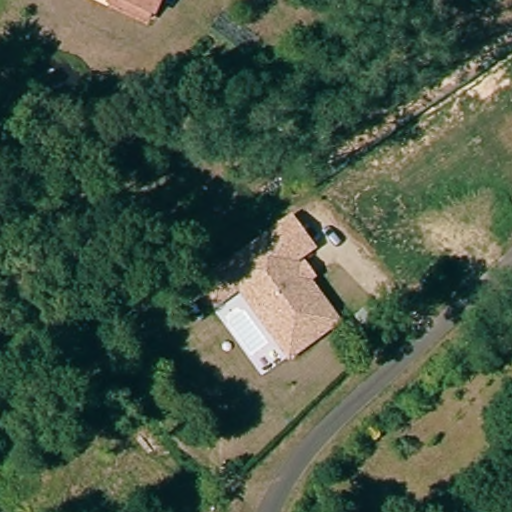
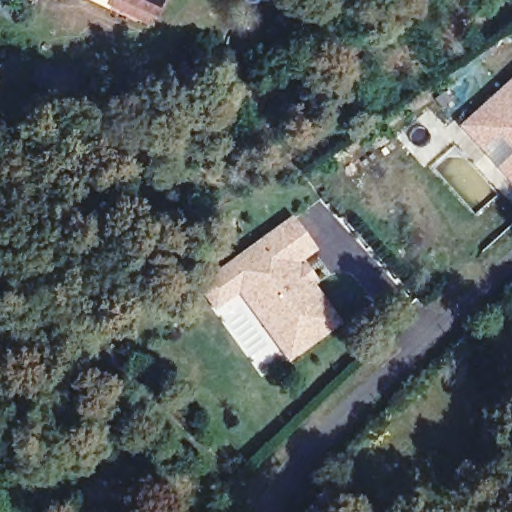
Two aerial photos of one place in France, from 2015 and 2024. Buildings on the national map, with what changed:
unchanged [(111,2),(109,7),(95,0),(131,0),(155,12),(151,21),(111,2)]
unchanged [(131,0),(161,0),(155,12),(131,0)]
new [(481,151),(458,126),(512,78),(512,152),(497,136),(481,151)]
new [(512,155),(512,184),(497,168),(512,155)]
unchanged [(317,249),(299,262),(343,323),(288,363),(238,294),(214,311),(196,287),(293,217),(317,249)]

